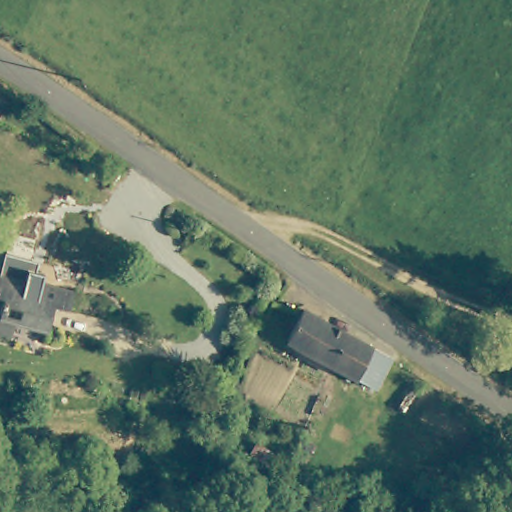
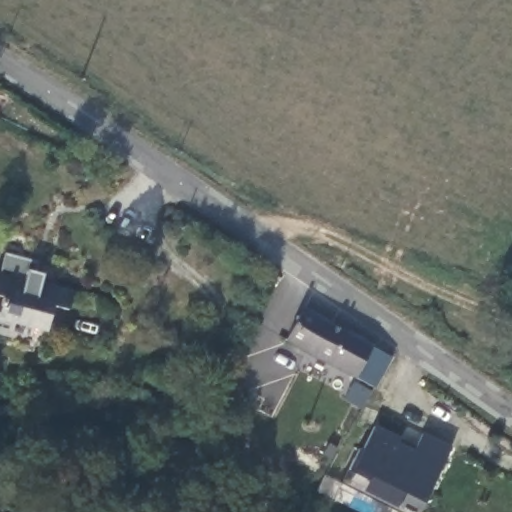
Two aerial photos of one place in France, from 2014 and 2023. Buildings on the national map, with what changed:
unchanged [(33,291),(49,295),(50,283),(85,292),(83,310),(61,305),(55,330),(24,321),(20,336),(0,331),(0,324),(3,312),(9,315),(14,296),(3,294),(9,270),(36,277),(33,291)]
unchanged [(378,392),(357,379),(291,337),(310,306),(376,348),(397,361),(378,392)]
new [(401,437),(398,443),(413,450),(424,433),(451,447),(418,512),(412,512),(401,506),(406,493),(369,475),(367,479),(350,470),(375,425),(401,437)]

